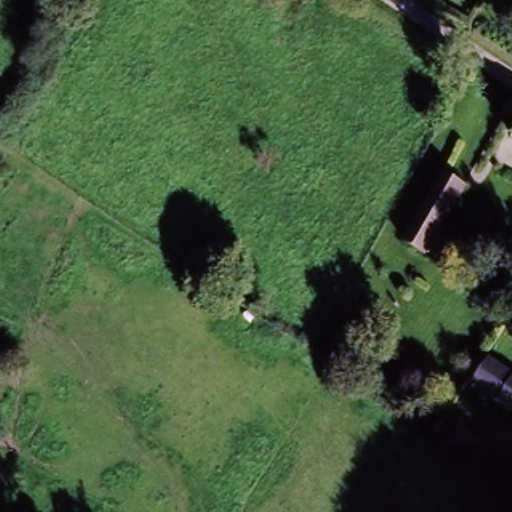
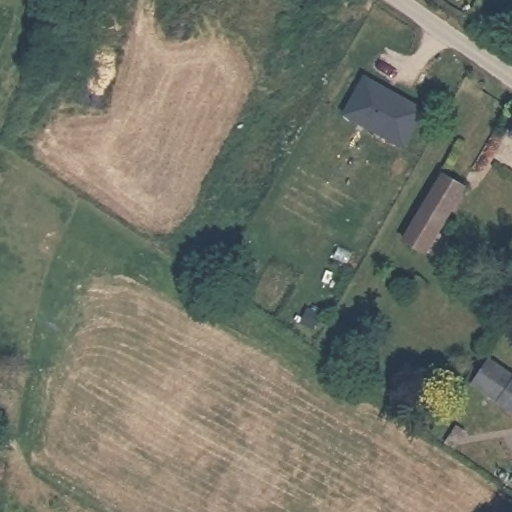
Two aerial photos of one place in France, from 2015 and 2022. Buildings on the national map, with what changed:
new [(427,110),(405,149),(343,115),(366,76),(427,110)]
unchanged [(512,128),(512,146),(505,142),(512,128)]
unchanged [(459,202),(424,263),(400,247),(427,202),(442,174),(467,188),(459,202)]
unchanged [(465,385),(484,356),(495,365),(512,376),(512,414),(477,390),(465,385)]

